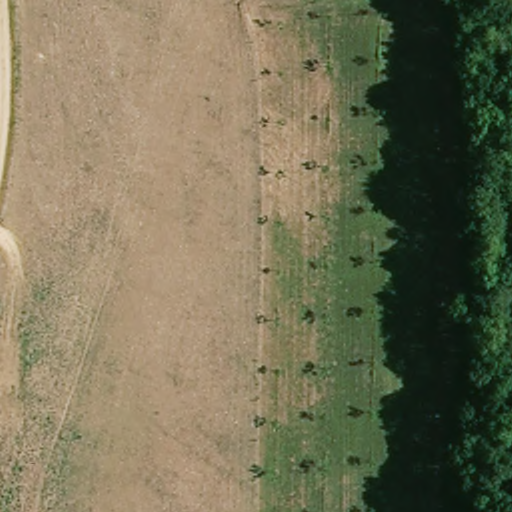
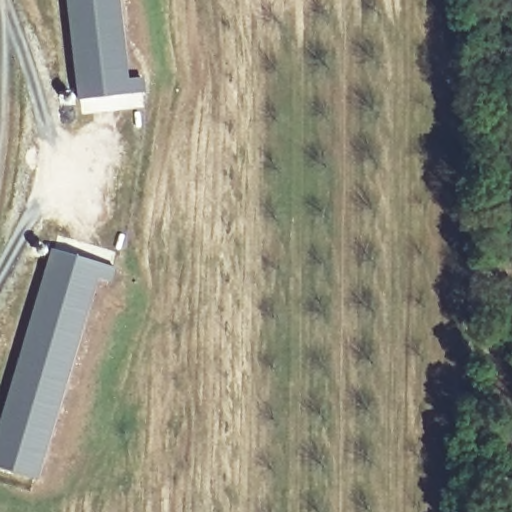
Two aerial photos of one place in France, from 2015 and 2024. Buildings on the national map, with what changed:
new [(143,76),(144,91),(78,99),(66,0),(118,0),(128,78),(143,76)]
new [(115,268),(111,283),(97,278),(38,481),(0,470),(0,422),(49,249),(115,268)]

